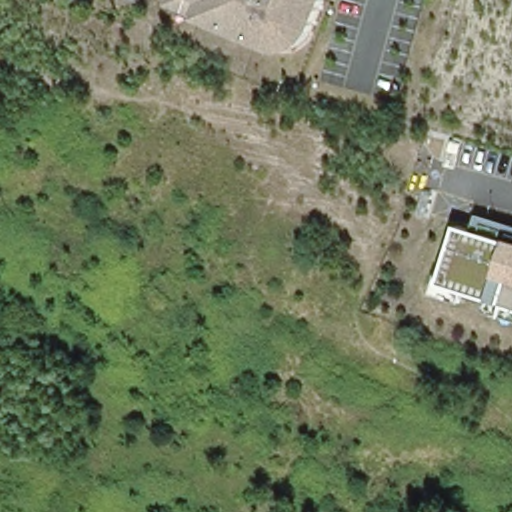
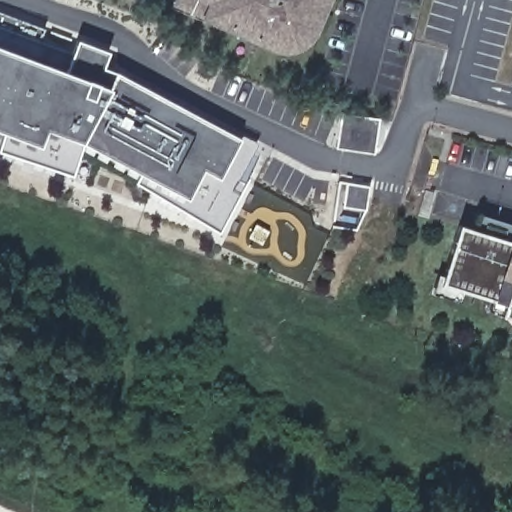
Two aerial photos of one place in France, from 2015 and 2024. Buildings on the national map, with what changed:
unchanged [(310,28),(310,29),(309,30),(309,31),(308,31),(308,32),(308,33),(307,34),(307,35),(306,35),(306,36),(305,37),(305,38),(304,38),(303,39),(302,39),(302,40),(301,41),(300,41),(300,42),(299,42),(298,42),(298,43),(297,43),(296,43),(295,43),(295,44),(294,44),(293,44),(292,44),(291,44),(290,44),(289,44),(288,44),(287,44),(286,44),(285,44),(284,44),(283,43),(282,43),(281,43),(280,49),(257,41),(260,36),(240,29),(238,34),(210,23),(211,18),(181,8),(184,0),(323,0),(310,28)]
new [(41,41),(70,51),(63,71),(0,48),(0,12),(45,30),(41,41)]
new [(63,71),(70,51),(75,40),(107,53),(101,70),(117,75),(236,138),(215,178),(204,171),(187,201),(142,177),(85,147),(80,143),(109,89),(63,71)]
new [(0,48),(63,71),(109,89),(80,143),(45,130),(39,147),(7,136),(0,133),(0,48)]
new [(376,154),(336,149),(342,114),(382,120),(376,154)]
new [(1,152),(7,136),(39,147),(45,130),(80,143),(85,147),(74,176),(1,152)]
new [(139,184),(142,177),(187,201),(204,171),(215,178),(236,138),(239,133),(260,144),(243,174),(250,178),(232,212),(220,233),(139,184)]
new [(347,182),(370,186),(367,210),(343,207),(347,182)]
unchanged [(460,226),(479,232),(482,217),(512,226),(512,321),(501,318),(505,305),(492,301),(441,284),(460,226)]

